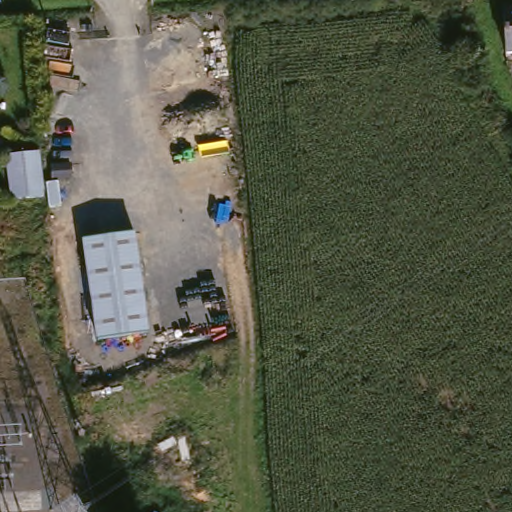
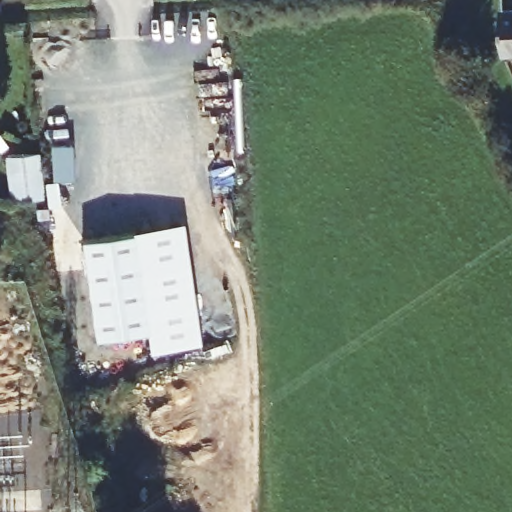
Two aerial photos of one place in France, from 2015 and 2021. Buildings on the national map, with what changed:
unchanged [(495,55),(492,14),(512,12),(512,54),(495,55)]
demolished [(10,154),(31,153),(36,204),(1,207),(0,188),(0,137),(9,136),(10,154)]
new [(5,159),(39,154),(44,199),(10,203),(5,159)]
new [(184,224),(201,346),(151,352),(148,331),(133,230),(184,224)]
unchanged [(133,230),(148,331),(95,338),(81,240),(133,230)]

